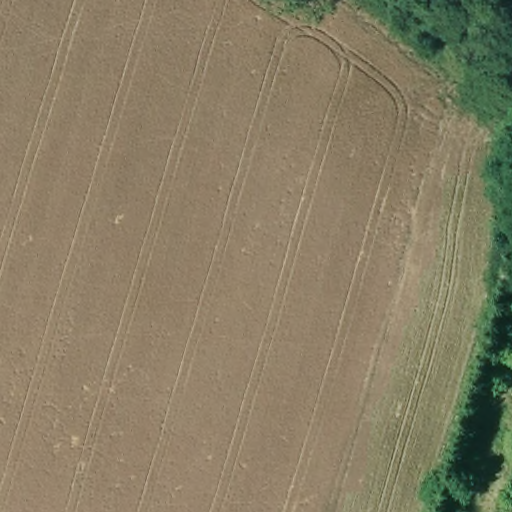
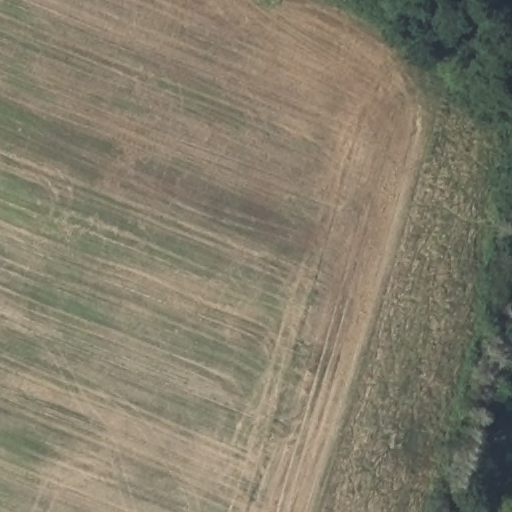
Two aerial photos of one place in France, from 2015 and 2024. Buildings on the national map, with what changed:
[]

